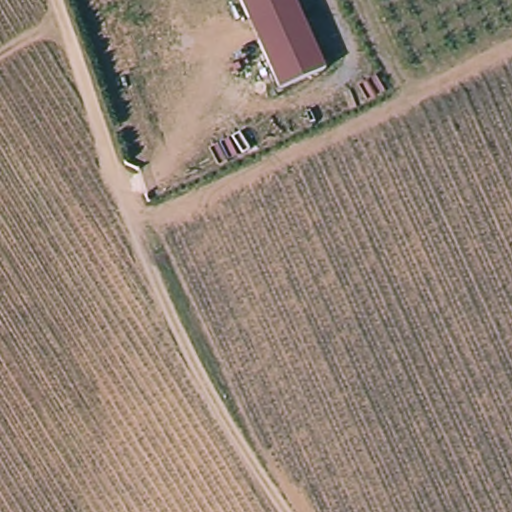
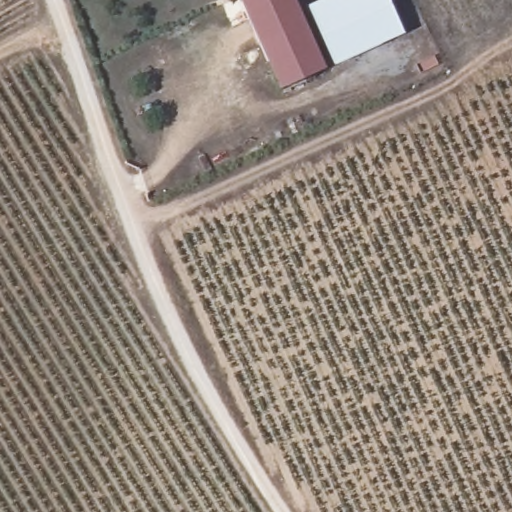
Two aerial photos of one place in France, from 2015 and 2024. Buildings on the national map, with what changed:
unchanged [(286,90),(244,0),(299,0),(331,69),(286,90)]
new [(388,0),(404,34),(336,65),(308,5),(319,0),(388,0)]

